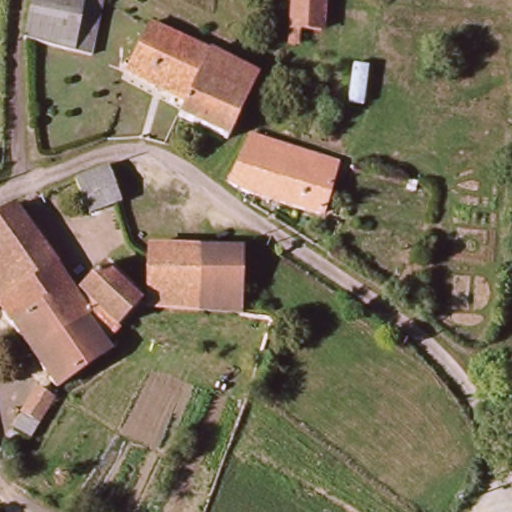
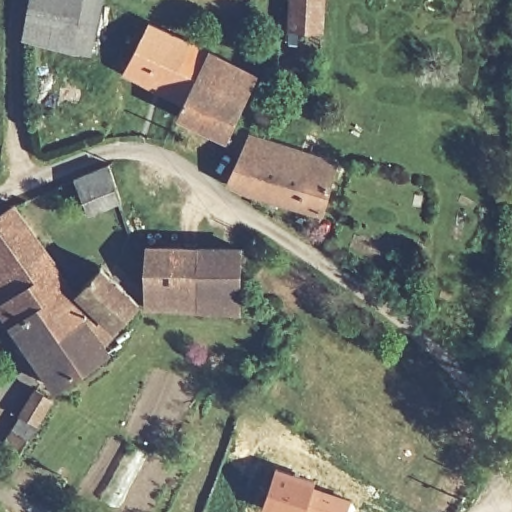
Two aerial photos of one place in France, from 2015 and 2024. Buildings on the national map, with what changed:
unchanged [(38,44),(48,0),(98,0),(88,55),(38,44)]
unchanged [(328,0),(328,30),(305,30),(303,45),(297,45),(299,0),(328,0)]
unchanged [(184,70),(201,80),(189,104),(130,68),(134,60),(155,21),(197,43),(184,70)]
unchanged [(201,80),(184,70),(197,43),(262,76),(255,92),(234,139),(183,116),(189,104),(201,80)]
unchanged [(344,166),(330,212),(260,195),(235,184),(258,135),(346,159),(344,166)]
unchanged [(124,172),(130,194),(100,204),(98,197),(74,206),(70,195),(101,180),(124,172)]
unchanged [(94,314),(92,317),(96,322),(112,343),(117,352),(63,389),(7,307),(0,312),(0,219),(22,203),(43,236),(94,314)]
unchanged [(210,296),(210,307),(157,307),(155,246),(209,247),(210,296)]
unchanged [(251,308),(210,307),(210,296),(209,247),(251,247),(251,308)]
unchanged [(112,343),(96,322),(106,312),(85,287),(113,264),(148,307),(112,343)]
unchanged [(57,398),(53,407),(45,416),(30,434),(15,422),(43,387),(57,398)]
new [(275,465),(316,482),(315,484),(305,512),(277,512),(261,507),(275,465)]
new [(315,484),(353,501),(348,512),(305,512),(315,484)]

